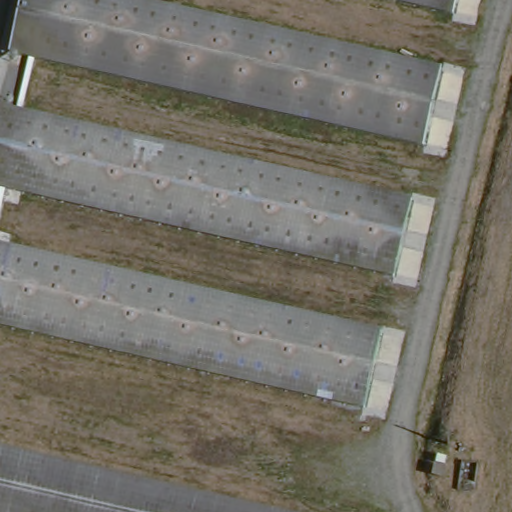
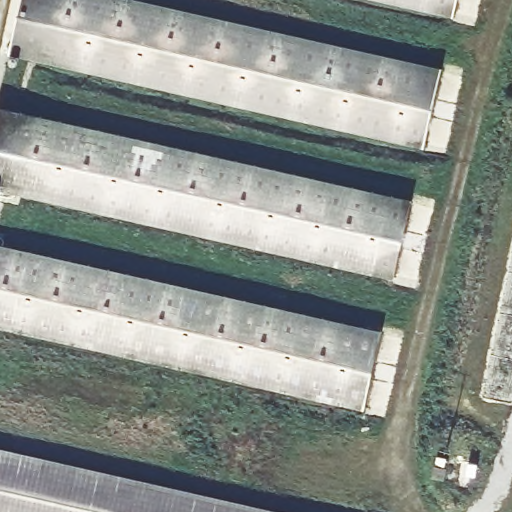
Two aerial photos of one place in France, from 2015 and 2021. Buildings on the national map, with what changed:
unchanged [(427,147),(16,47),(27,0),(137,0),(444,75),(427,147)]
unchanged [(396,0),(454,0),(451,14),(396,0)]
unchanged [(415,199),(398,272),(30,187),(26,205),(7,200),(12,183),(0,180),(0,108),(1,104),(415,199)]
unchanged [(17,248),(386,333),(370,408),(0,323),(0,229),(20,234),(17,248)]
unchanged [(0,450),(274,512),(0,512),(0,450)]

